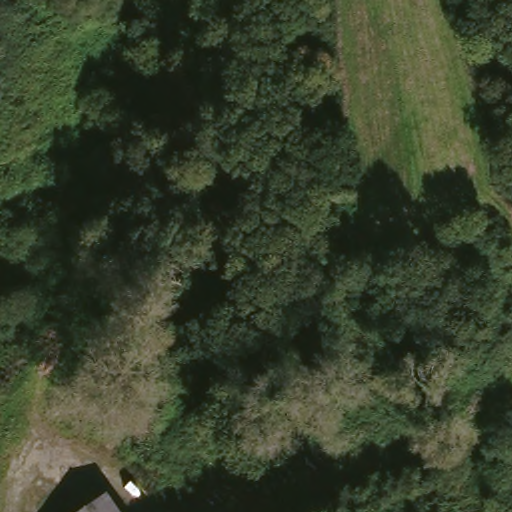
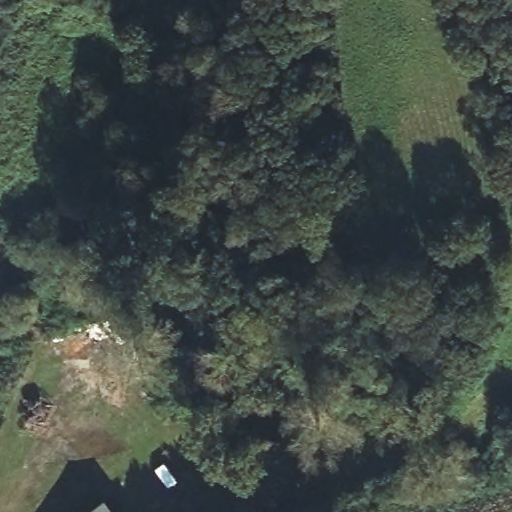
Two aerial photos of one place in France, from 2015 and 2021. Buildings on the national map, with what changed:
unchanged [(91,512),(114,497),(124,512),(91,512)]

